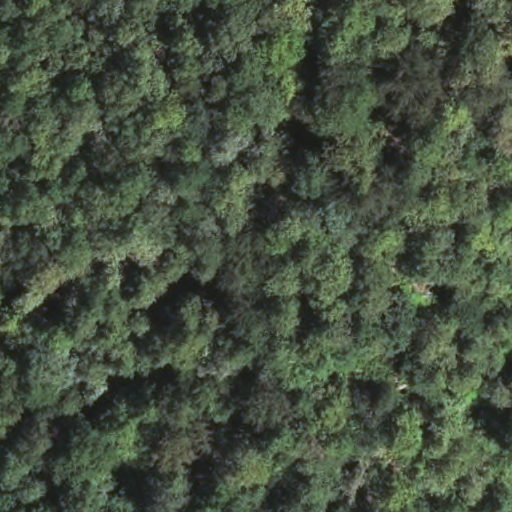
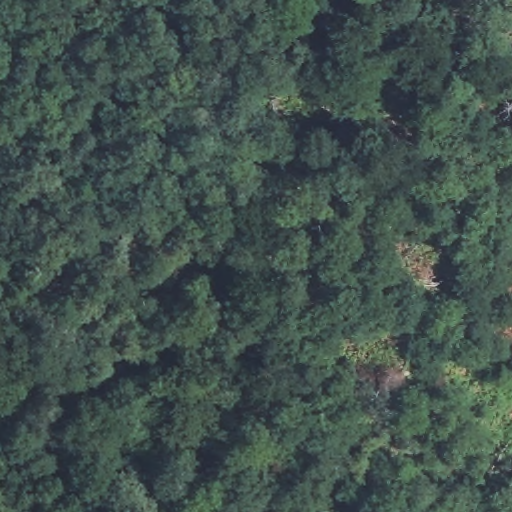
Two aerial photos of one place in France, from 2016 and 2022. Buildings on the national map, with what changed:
[]

